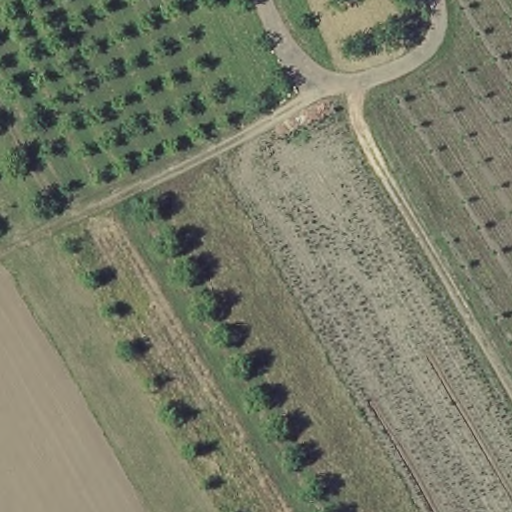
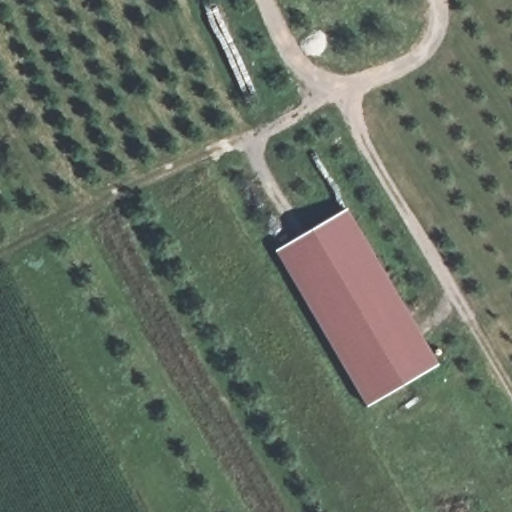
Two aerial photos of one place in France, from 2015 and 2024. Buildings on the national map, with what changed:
new [(346,209),(437,365),(367,406),(276,250),(346,209)]

